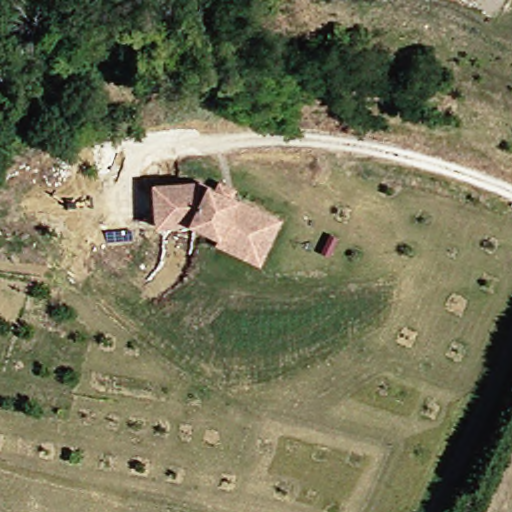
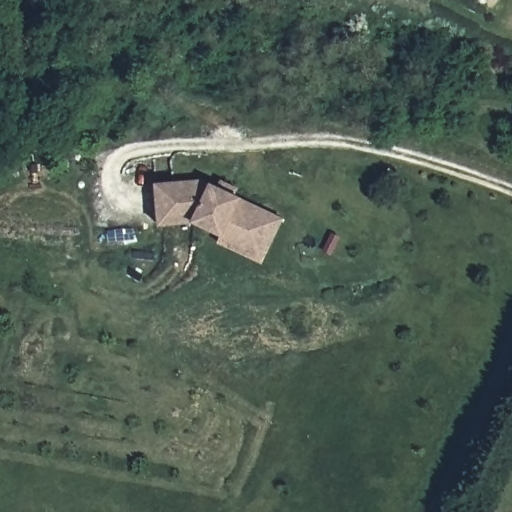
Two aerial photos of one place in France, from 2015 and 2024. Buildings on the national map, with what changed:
unchanged [(147,188),(188,185),(211,193),(217,187),(233,192),(228,202),(279,224),(257,270),(210,249),(213,242),(185,230),(150,232),(147,188)]

